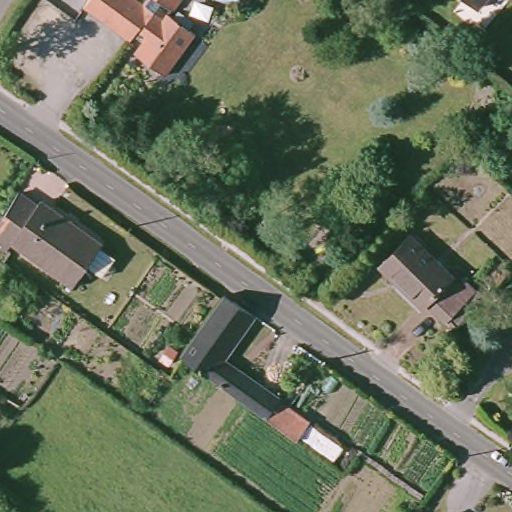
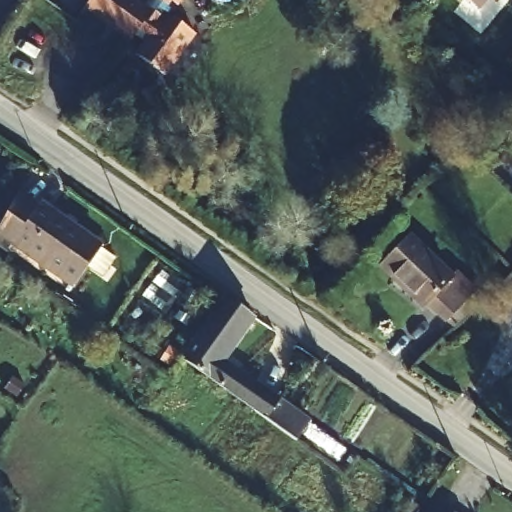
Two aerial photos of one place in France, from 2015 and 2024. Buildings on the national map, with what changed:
unchanged [(138,42),(127,33),(121,39),(77,4),(80,0),(125,0),(135,7),(140,0),(171,0),(161,14),(187,35),(157,76),(129,54),(138,42)]
unchanged [(469,0),(484,0),(478,7),(469,0)]
unchanged [(18,198),(37,210),(40,205),(104,247),(102,249),(117,259),(106,276),(90,266),(77,285),(13,244),(5,257),(0,254),(0,226),(18,198)]
unchanged [(408,245),(450,280),(461,268),(479,283),(449,316),(432,302),(422,312),(380,277),(408,245)]
unchanged [(212,372),(227,382),(231,376),(260,397),(268,402),(258,417),(186,367),(207,337),(198,330),(219,301),(248,321),(212,372)]
unchanged [(258,417),(268,402),(260,397),(265,391),(307,422),(292,442),(258,417)]

